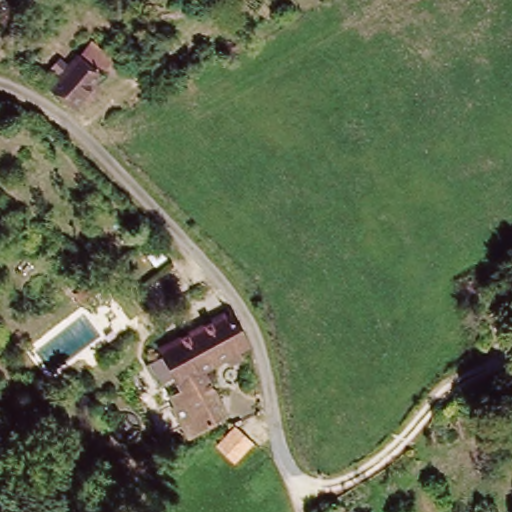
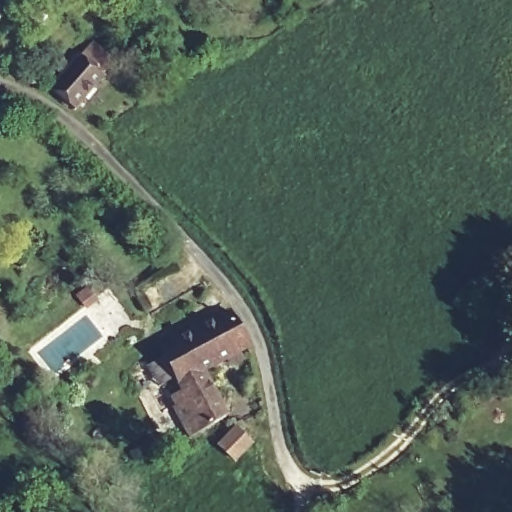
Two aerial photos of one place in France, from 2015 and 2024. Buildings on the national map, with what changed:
unchanged [(74,63),(82,47),(105,61),(97,76),(100,79),(74,117),(47,97),(70,62),(74,63)]
unchanged [(251,342),(237,350),(242,357),(232,362),(229,355),(205,369),(231,415),(191,437),(174,407),(180,404),(172,390),(184,383),(179,376),(161,386),(150,365),(167,353),(162,345),(228,308),(251,342)]

